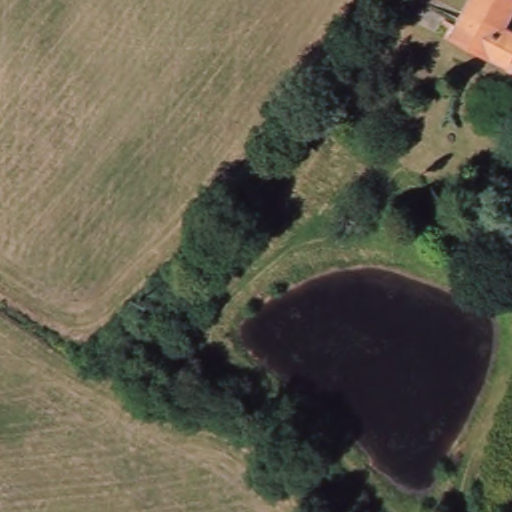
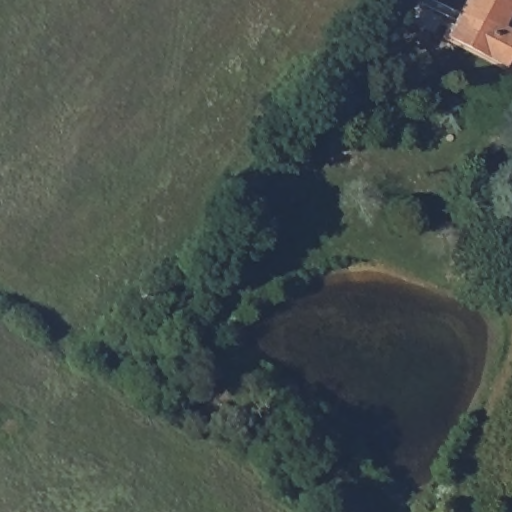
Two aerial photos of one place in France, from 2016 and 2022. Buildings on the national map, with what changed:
unchanged [(509,29),(512,30),(512,70),(510,72),(453,36),(476,0),(512,0),(512,25),(509,29)]
unchanged [(501,475),(498,487),(483,480),(488,469),(501,475)]

